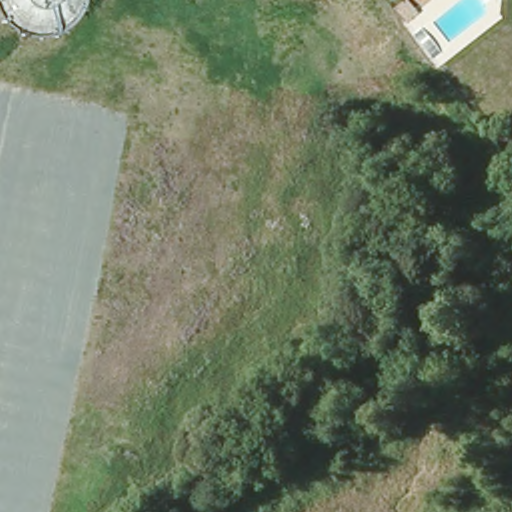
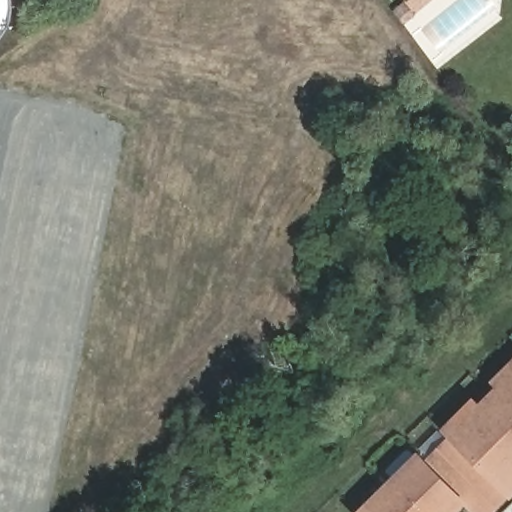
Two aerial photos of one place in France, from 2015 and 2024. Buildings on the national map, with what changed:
new [(428,463),(456,437),(448,430),(465,414),(477,402),(484,409),(505,388),(502,386),(498,382),(512,368),(512,496),(505,488),(495,498),(501,503),(492,512),(476,512),(466,502),(456,512),(364,512),(421,455),(428,463)]

